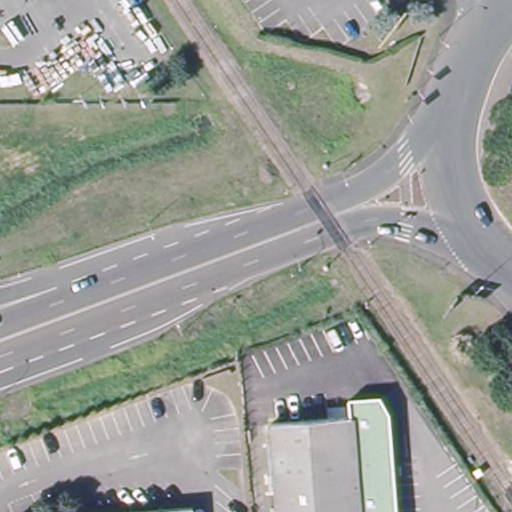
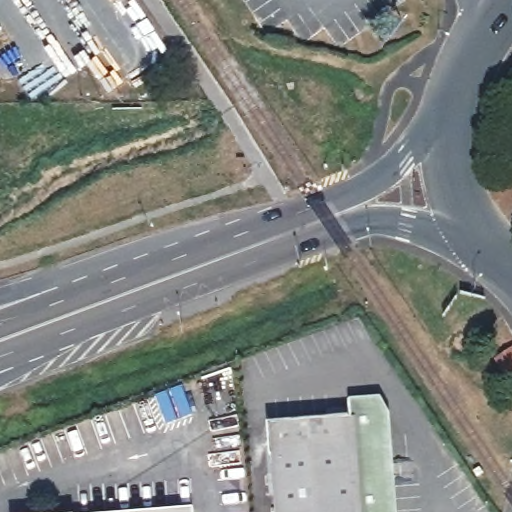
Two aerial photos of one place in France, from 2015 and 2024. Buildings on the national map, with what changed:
unchanged [(502,394),(491,374),(508,364),(512,371),(512,388),(502,394)]
unchanged [(352,417),(352,402),(380,401),(391,417),(398,512),(277,512),(270,423),(352,417)]
unchanged [(192,512),(85,512),(191,505),(192,512)]

